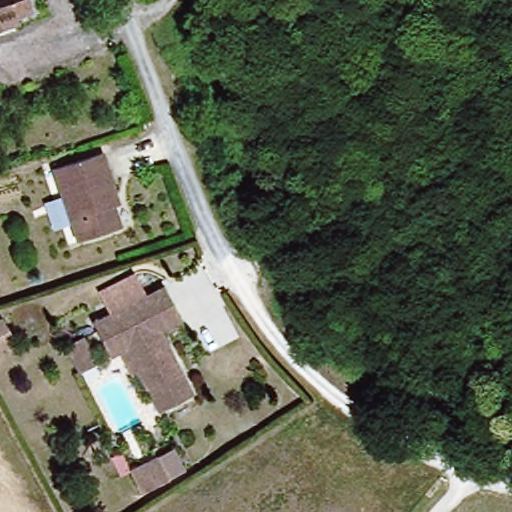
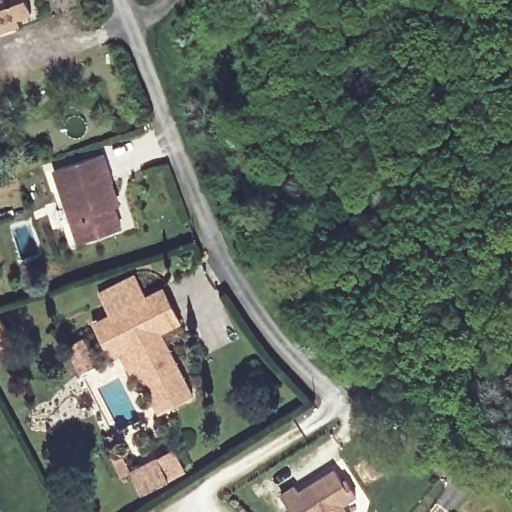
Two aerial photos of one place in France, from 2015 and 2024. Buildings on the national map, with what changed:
unchanged [(36,7),(19,16),(23,25),(0,37),(0,0),(33,0),(36,7)]
unchanged [(115,203),(126,230),(86,248),(55,169),(100,150),(119,201),(115,203)]
unchanged [(125,353),(118,357),(96,317),(163,281),(182,317),(165,327),(201,388),(170,409),(147,371),(138,376),(125,353)]
unchanged [(0,340),(0,311),(12,332),(0,340)]
unchanged [(80,372),(66,343),(85,335),(98,362),(80,372)]
unchanged [(139,467),(165,454),(181,446),(192,468),(177,476),(150,490),(139,467)]
new [(298,490),(333,467),(342,480),(346,478),(358,497),(344,506),(348,512),(291,512),(279,493),(295,484),(298,490)]

